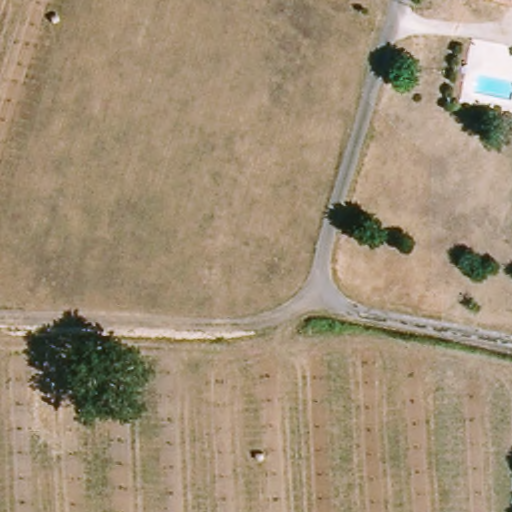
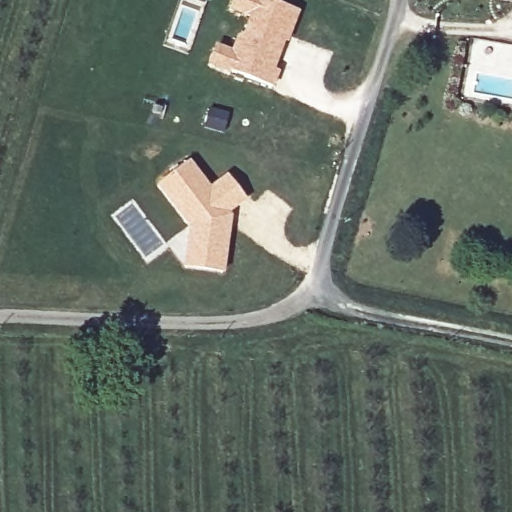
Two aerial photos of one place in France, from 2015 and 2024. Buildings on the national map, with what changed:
new [(230,51),(236,37),(241,34),(249,15),(230,8),(233,0),(270,0),(297,10),(285,41),(283,40),(275,60),(272,69),(277,71),(271,87),(231,72),(207,63),(214,45),(230,51)]
new [(190,225),(158,183),(187,161),(209,190),(227,175),(244,197),(225,211),(228,215),(221,221),(226,228),(223,256),(221,272),(185,268),(187,252),(190,225)]

